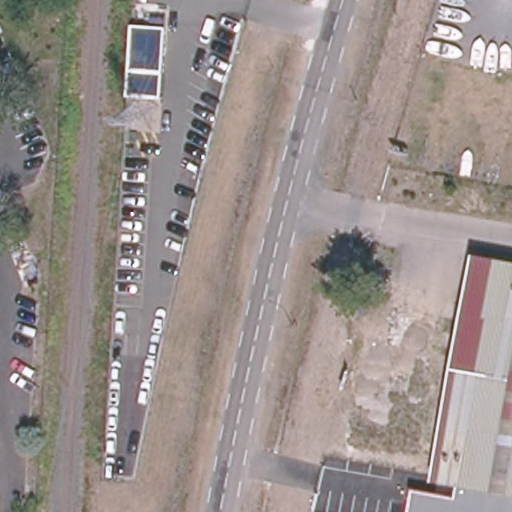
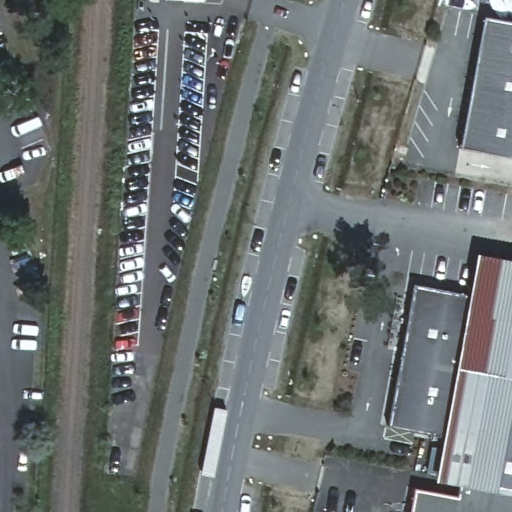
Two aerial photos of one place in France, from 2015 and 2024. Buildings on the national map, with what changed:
new [(486,15),(512,20),(512,155),(462,147),(486,15)]
unchanged [(162,97),(128,96),(133,26),(166,27),(162,97)]
unchanged [(461,377),(463,362),(476,293),(482,257),(512,262),(512,490),(463,481),(442,477),(449,437),(461,377)]
new [(415,282),(476,293),(463,362),(461,377),(449,437),(389,427),(415,282)]
demolished [(428,484),(413,482),(402,468),(388,477),(373,474),(395,349),(405,351),(415,344),(435,348),(442,358),(447,359),(444,373),(433,428),(437,430),(428,484)]
unchanged [(415,489),(458,497),(463,481),(512,490),(512,512),(411,512),(415,489)]

